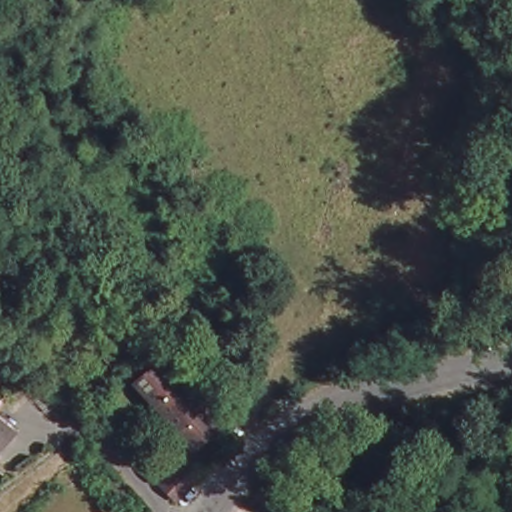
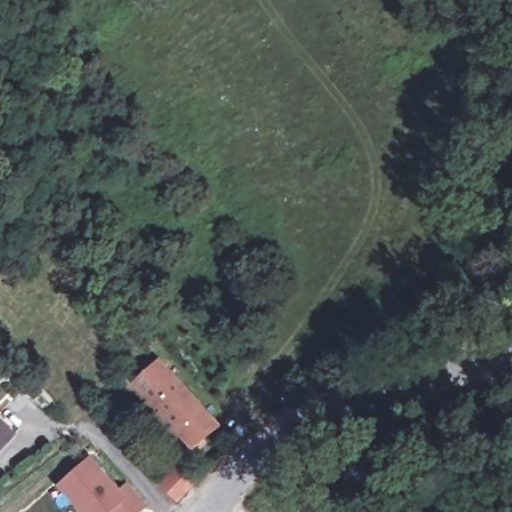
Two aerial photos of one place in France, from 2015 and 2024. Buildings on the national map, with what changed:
unchanged [(155,353),(214,416),(192,437),(132,374),(155,353)]
unchanged [(10,436),(0,446),(0,427),(10,436)]
new [(116,492),(123,486),(142,506),(135,512),(113,512),(110,508),(105,512),(82,512),(57,486),(87,460),(116,492)]
unchanged [(188,481),(173,497),(158,483),(173,467),(188,481)]

